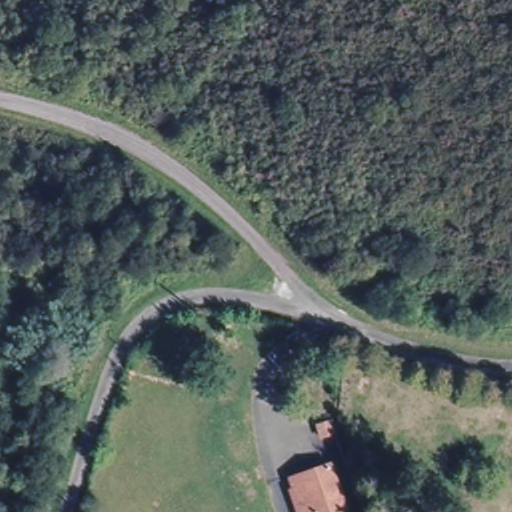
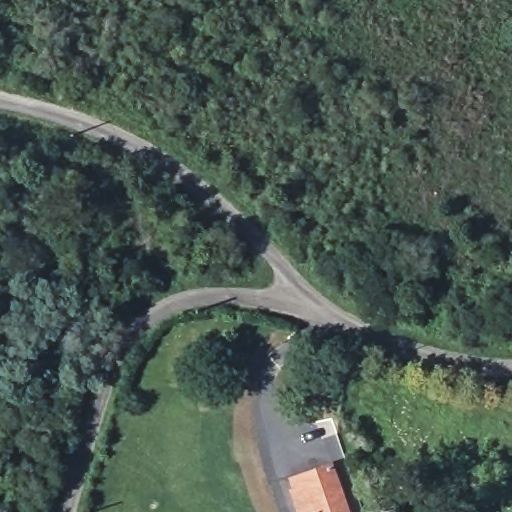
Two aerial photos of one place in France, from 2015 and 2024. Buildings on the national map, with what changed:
unchanged [(335,432),(320,437),(317,424),(330,420),(335,432)]
unchanged [(288,492),(297,489),(292,476),(330,465),(346,512),(297,512),(288,492)]

